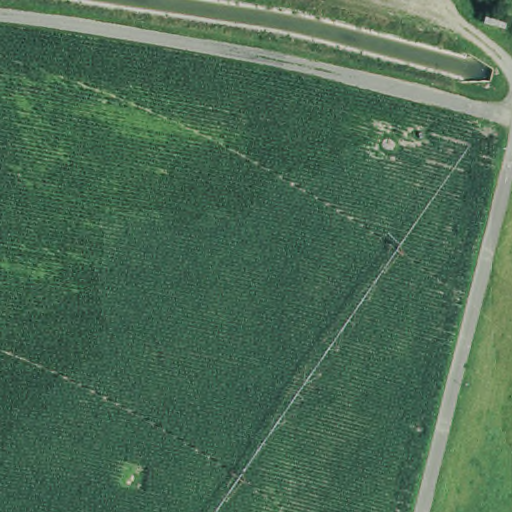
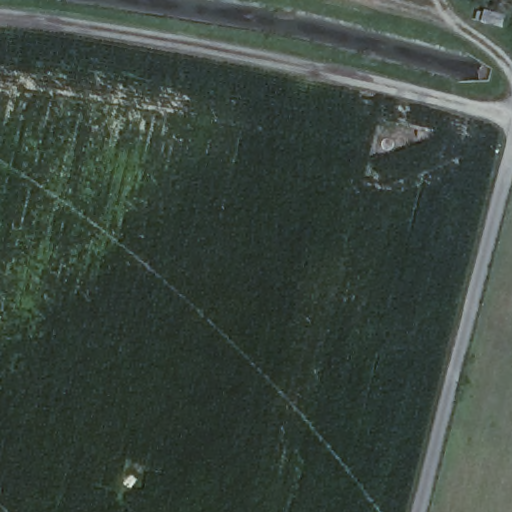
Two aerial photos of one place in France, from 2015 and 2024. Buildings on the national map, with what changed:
unchanged [(506,0),(506,2),(500,0),(506,0)]

